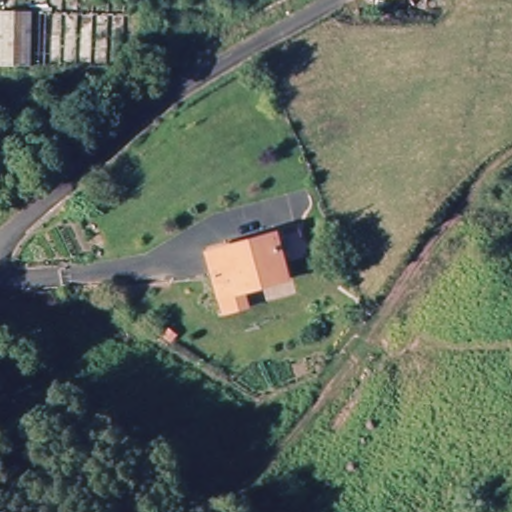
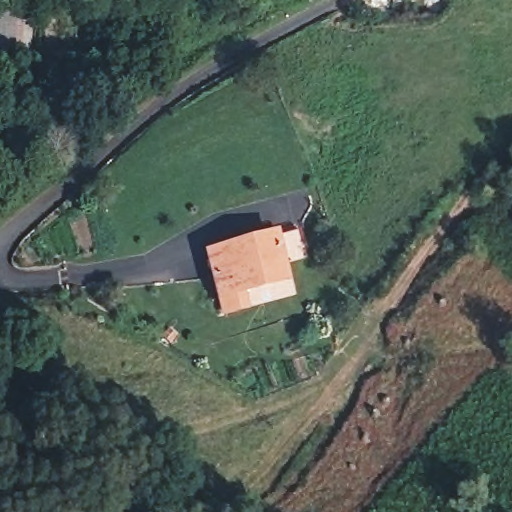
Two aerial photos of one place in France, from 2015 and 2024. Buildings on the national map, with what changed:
unchanged [(0,65),(3,10),(35,12),(31,66),(0,65)]
unchanged [(204,252),(295,232),(301,260),(276,266),(280,281),(235,290),(239,307),(217,312),(213,295),(204,252)]

